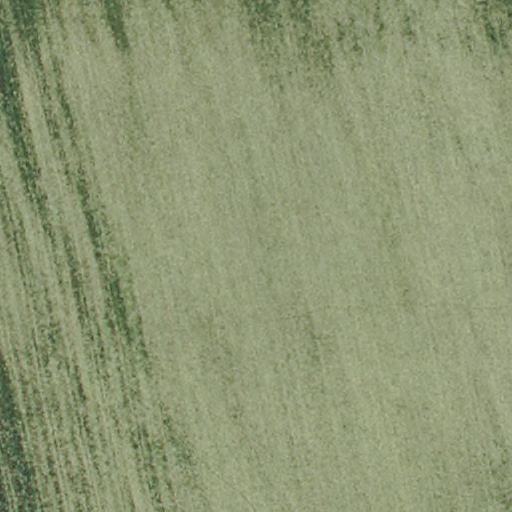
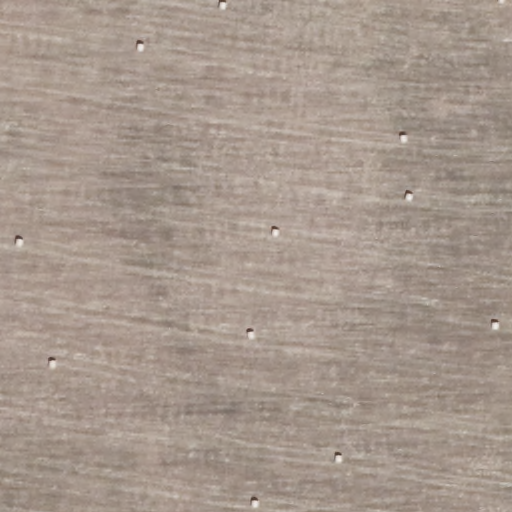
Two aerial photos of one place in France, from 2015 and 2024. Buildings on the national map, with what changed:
[]

